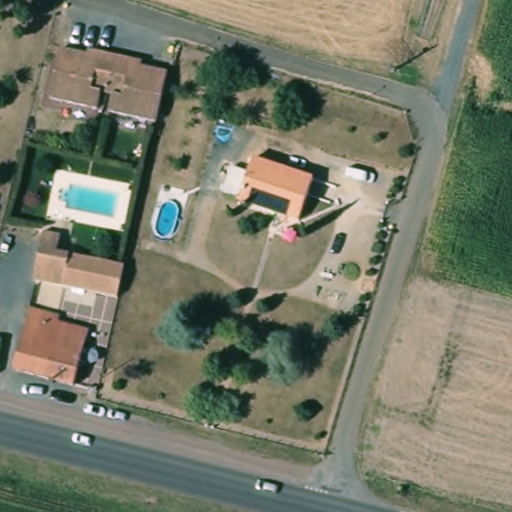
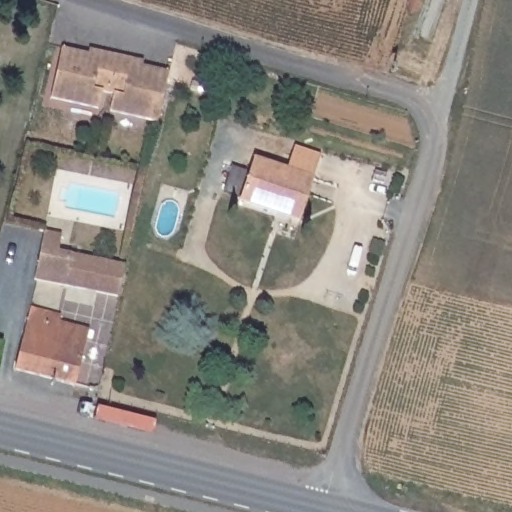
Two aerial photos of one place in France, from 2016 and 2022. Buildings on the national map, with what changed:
unchanged [(110,112),(112,93),(98,89),(94,108),(48,97),(60,42),(94,51),(95,43),(132,53),(130,59),(168,68),(155,123),(110,112)]
unchanged [(313,178),(297,218),(235,195),(250,155),(313,178)]
unchanged [(114,293),(34,274),(43,228),(60,232),(57,246),(121,260),(114,293)]
unchanged [(60,322),(86,330),(72,383),(11,368),(29,307),(61,315),(60,322)]

